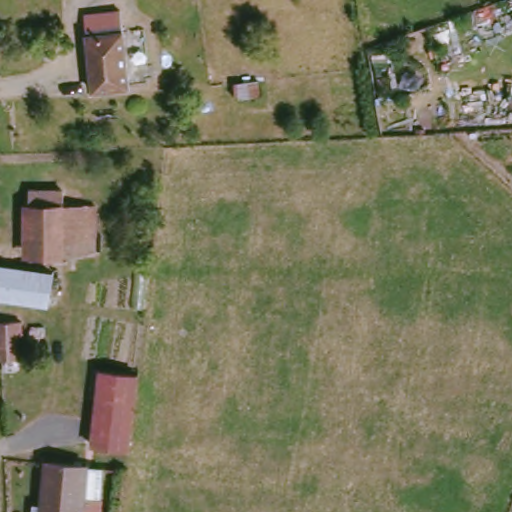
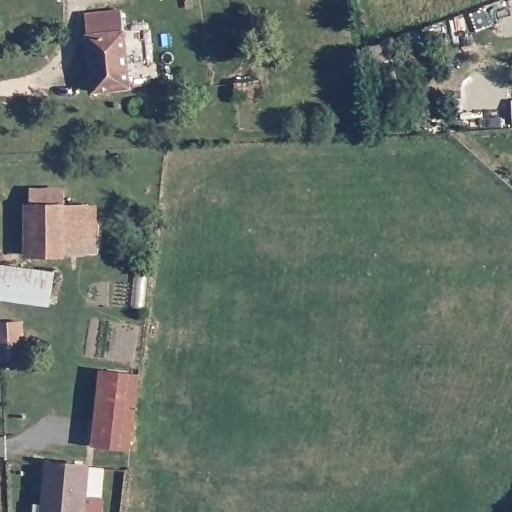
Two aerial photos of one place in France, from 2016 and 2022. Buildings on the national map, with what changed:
unchanged [(126,14),(132,91),(95,93),(90,16),(126,14)]
unchanged [(35,187),(70,187),(70,200),(90,202),(90,250),(37,251),(35,187)]
unchanged [(50,306),(0,301),(0,265),(55,275),(50,306)]
unchanged [(0,324),(18,325),(19,361),(2,361),(0,324)]
unchanged [(93,446),(102,371),(139,375),(129,451),(93,446)]
unchanged [(95,465),(95,474),(105,476),(105,496),(106,512),(33,512),(33,505),(43,505),(49,460),(95,465)]

